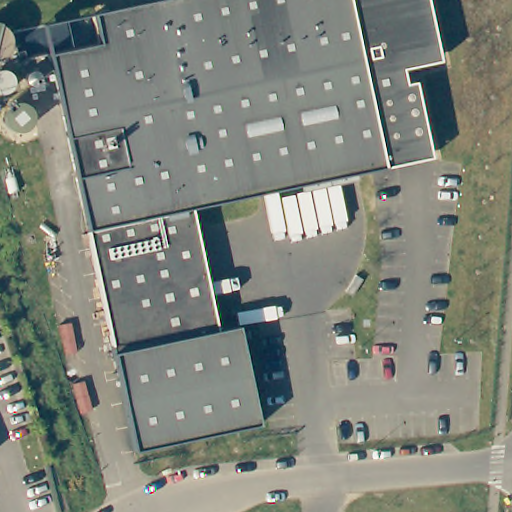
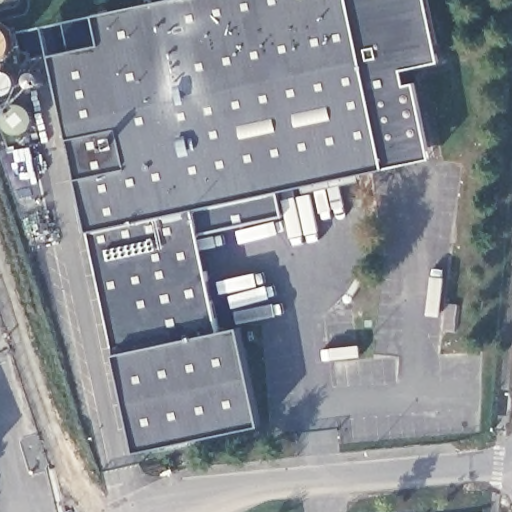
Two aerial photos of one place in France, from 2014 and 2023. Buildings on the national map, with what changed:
unchanged [(423,0),(435,58),(391,68),(395,81),(412,78),(429,153),(190,205),(217,329),(237,324),(258,422),(135,449),(49,54),(41,25),(152,0),(423,0)]

